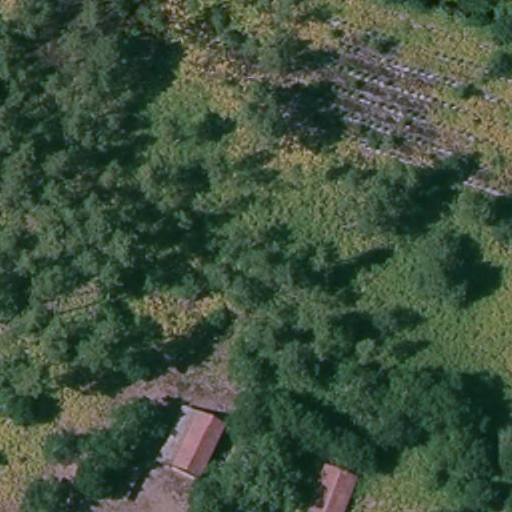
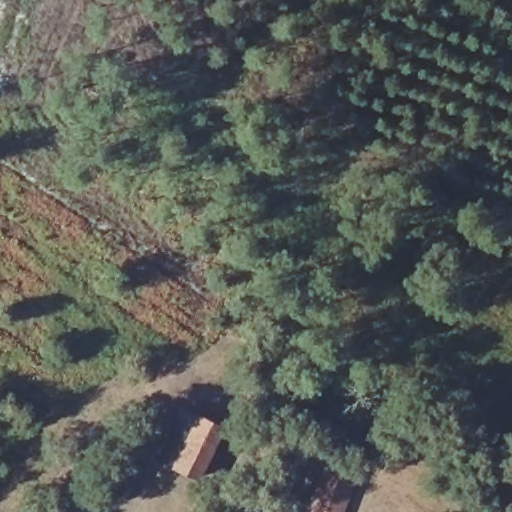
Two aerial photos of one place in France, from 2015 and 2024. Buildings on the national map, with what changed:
unchanged [(203,477),(163,459),(162,459),(186,407),(227,426),(203,477)]
unchanged [(121,492),(111,488),(124,459),(133,464),(121,492)]
unchanged [(341,512),(323,512),(312,506),(328,468),(354,481),(341,512)]

